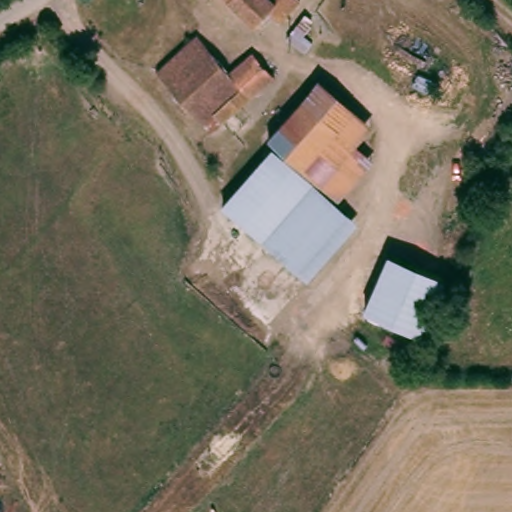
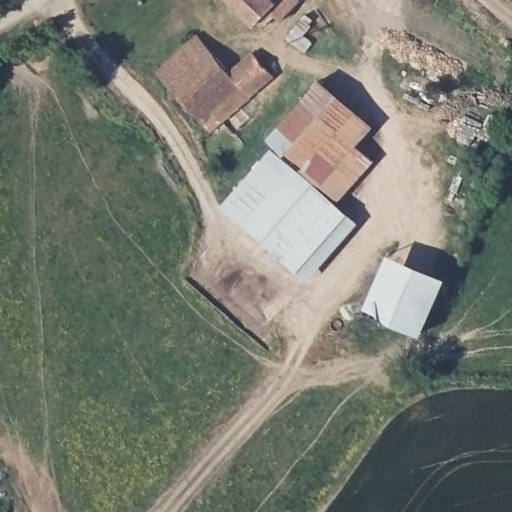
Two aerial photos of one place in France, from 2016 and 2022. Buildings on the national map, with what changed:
unchanged [(282,22),(273,12),(257,25),(233,0),(299,0),(303,3),(282,22)]
unchanged [(287,39),(306,15),(308,17),(313,21),(301,35),(313,45),(304,55),(297,49),(287,39)]
unchanged [(231,73),(255,53),(276,77),(222,123),(215,114),(202,124),(159,72),(200,37),(231,73)]
unchanged [(356,146),(323,182),(294,156),(273,137),(323,79),(325,77),(363,112),(376,124),(356,146)]
unchanged [(376,163),(343,199),(323,182),(356,146),(376,163)]
unchanged [(304,263),(294,275),(262,245),(223,207),(245,182),(273,152),(286,164),(313,188),(347,218),(304,263)]
unchanged [(449,281),(422,338),(368,312),(396,255),(449,281)]

